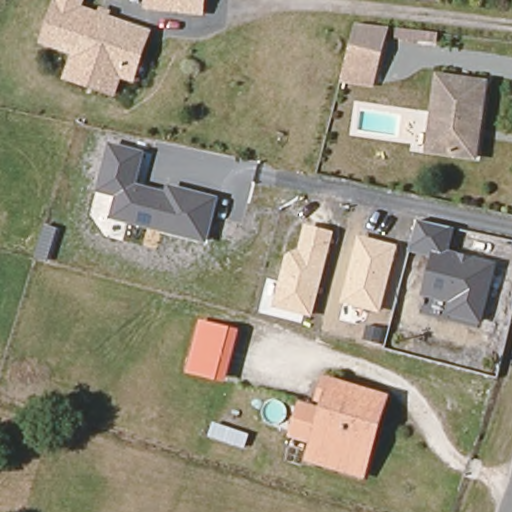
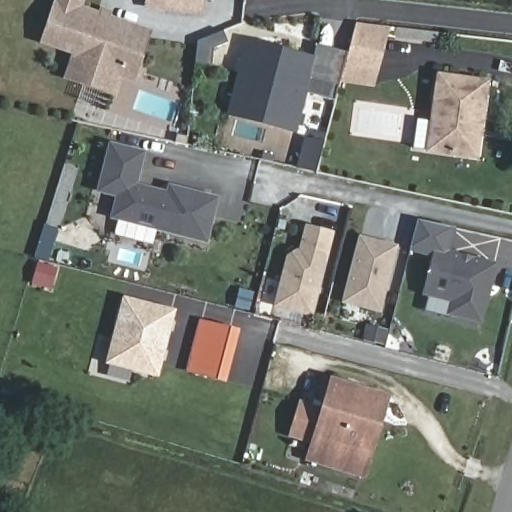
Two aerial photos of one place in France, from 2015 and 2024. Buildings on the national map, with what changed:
unchanged [(67,59),(69,53),(37,42),(51,0),(76,0),(72,9),(122,26),(142,33),(135,55),(127,80),(113,75),(107,94),(60,78),(67,59)]
unchanged [(141,5),(142,0),(194,0),(193,12),(141,5)]
unchanged [(356,24),(381,27),(372,72),(369,86),(340,80),(343,67),(356,24)]
new [(227,116),(245,41),(312,57),(305,92),(296,134),(227,116)]
new [(316,45),(346,52),(333,100),(305,92),(312,57),(316,45)]
unchanged [(492,81),(485,122),(481,122),(476,156),(432,148),(443,74),(492,81)]
unchanged [(207,243),(111,220),(115,197),(96,193),(110,143),(145,151),(137,184),(166,191),(167,185),(220,197),(207,243)]
unchanged [(481,325),(446,315),(449,302),(422,295),(431,257),(410,251),(420,220),(456,229),(451,251),(498,262),(481,325)]
unchanged [(312,317),(272,307),(285,254),(297,249),(305,225),(335,232),(312,317)]
unchanged [(381,313),(341,305),(357,236),(398,245),(381,313)]
new [(157,378),(104,364),(122,296),(176,310),(157,378)]
unchanged [(217,382),(181,373),(194,317),(230,325),(217,382)]
unchanged [(306,462),(311,447),(290,442),(300,410),(321,415),(323,402),(315,398),(318,384),(375,401),(386,404),(372,456),(365,481),(306,462)]

